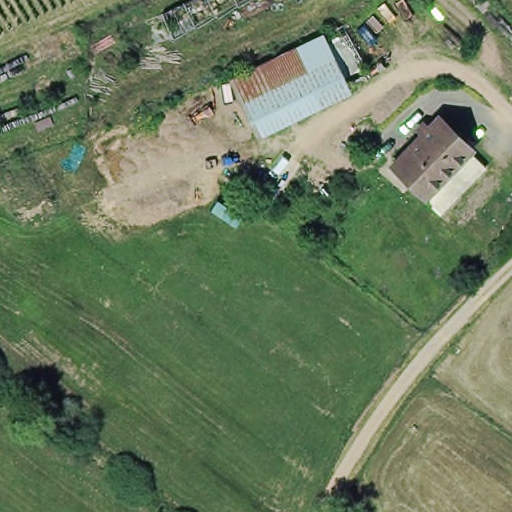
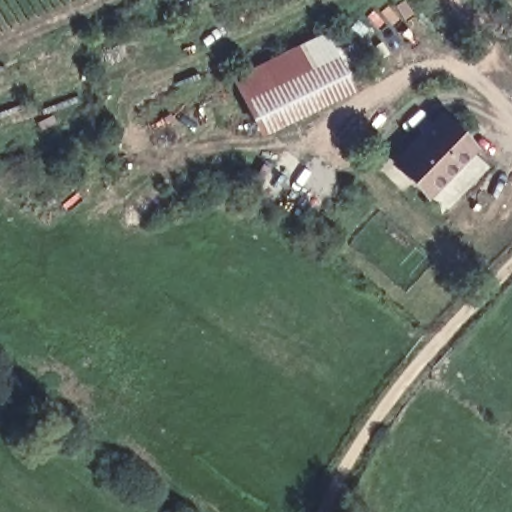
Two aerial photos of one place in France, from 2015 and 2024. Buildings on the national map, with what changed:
unchanged [(190,0),(251,0),(177,37),(175,33),(165,13),(190,0)]
unchanged [(249,116),(233,83),(258,71),(298,51),(324,39),(344,80),(333,85),(294,104),(256,123),(253,124),(249,116)]
unchanged [(448,191),(434,205),(419,191),(384,156),(397,144),(427,113),(462,146),(477,161),(448,191)]

